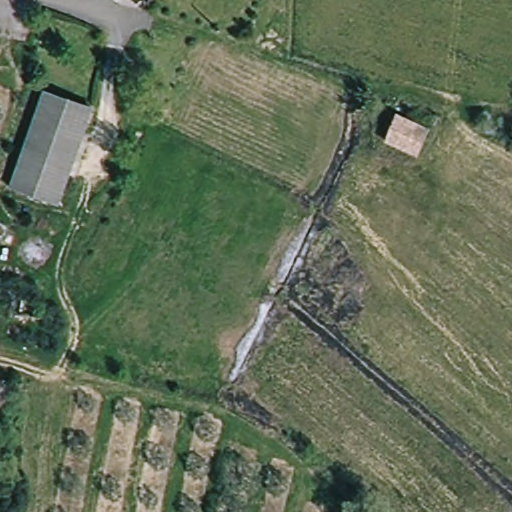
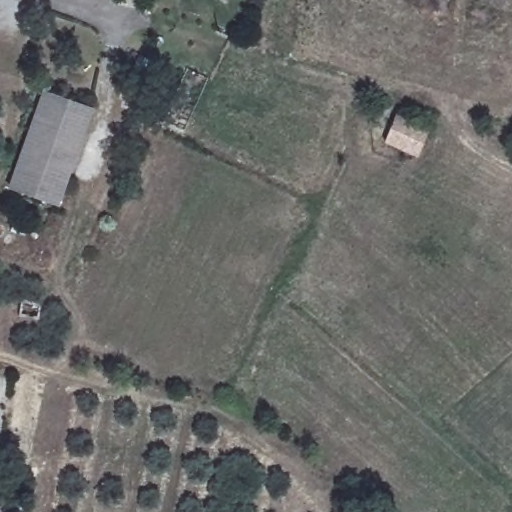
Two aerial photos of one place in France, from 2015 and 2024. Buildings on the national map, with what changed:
unchanged [(92,107),(55,203),(5,184),(43,88),(92,107)]
unchanged [(394,117),(426,131),(413,156),(381,142),(394,117)]
unchanged [(37,304),(34,320),(16,316),(20,300),(37,304)]

